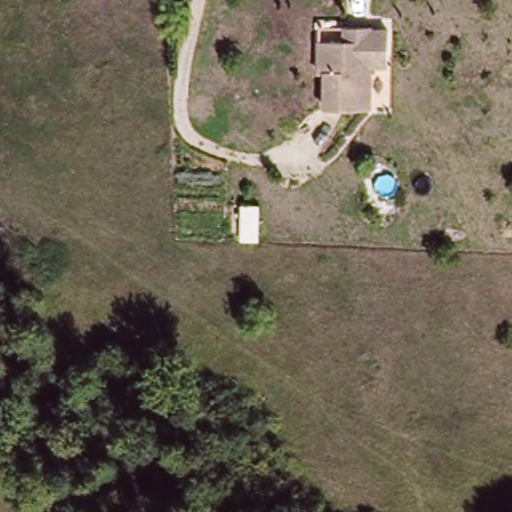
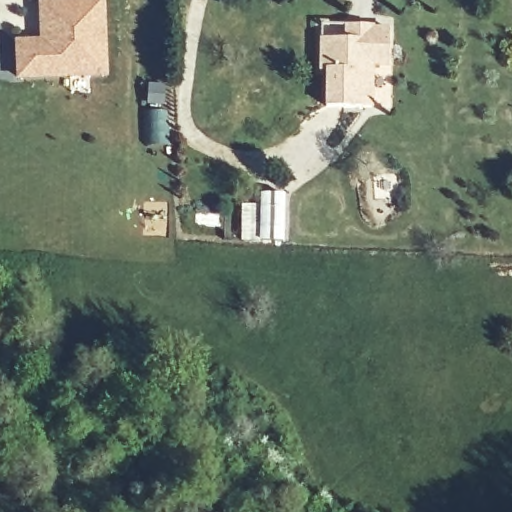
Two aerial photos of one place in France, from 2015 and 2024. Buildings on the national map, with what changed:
new [(106,74),(19,76),(18,53),(17,41),(43,40),(42,1),(55,0),(105,0),(106,74)]
unchanged [(319,25),(370,26),(370,29),(370,39),(330,39),(331,69),(325,69),(325,72),(319,72),(319,25)]
unchanged [(325,69),(331,69),(330,39),(370,39),(370,29),(387,29),(387,65),(370,65),(370,108),(325,107),(325,72),(325,69)]
new [(283,241),(242,241),(242,207),(260,207),(260,194),(283,195),(283,241)]

